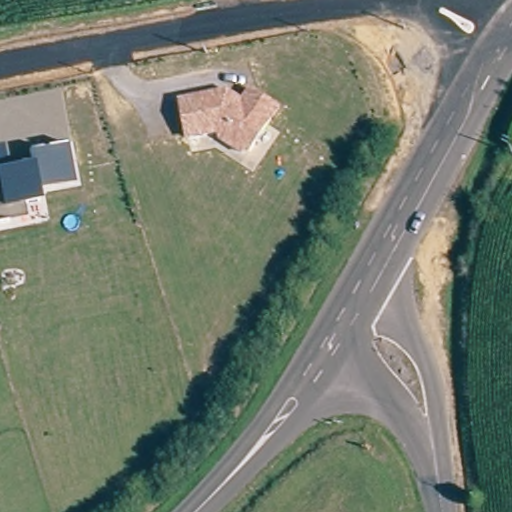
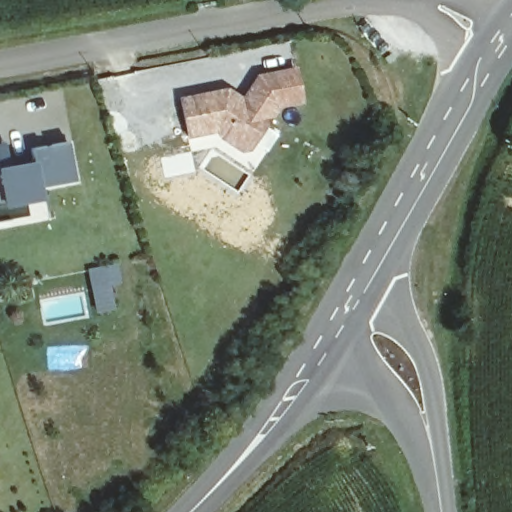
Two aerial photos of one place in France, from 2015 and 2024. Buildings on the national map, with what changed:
new [(254,88),(260,77),(298,68),(304,102),(282,106),(254,88)]
unchanged [(223,139),(222,132),(215,133),(192,138),(184,100),(217,94),(230,91),(245,101),(254,88),(282,106),(252,151),(244,153),(223,139)]
unchanged [(9,218),(0,220),(0,143),(4,142),(8,160),(31,155),(29,145),(66,138),(74,175),(36,183),(39,196),(28,198),(30,212),(9,217),(9,218)]
new [(110,286),(115,310),(97,313),(89,269),(118,263),(121,283),(110,286)]

